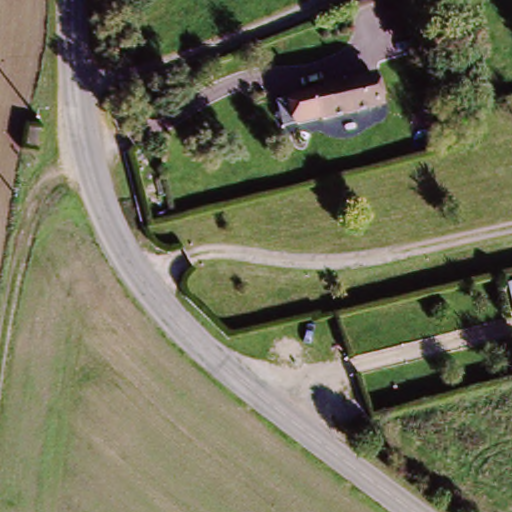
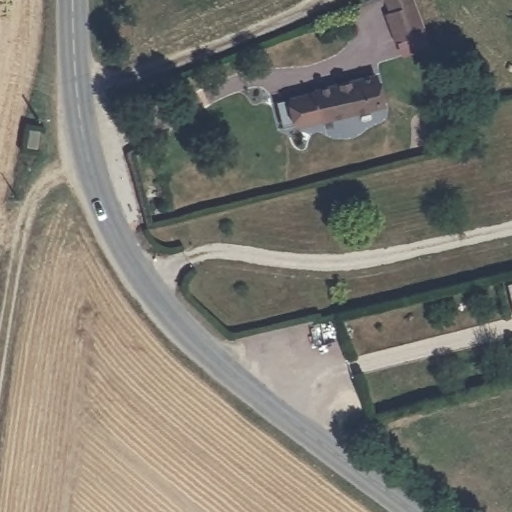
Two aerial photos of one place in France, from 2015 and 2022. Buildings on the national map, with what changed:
unchanged [(369,82),(374,110),(322,120),(318,92),(369,82)]

